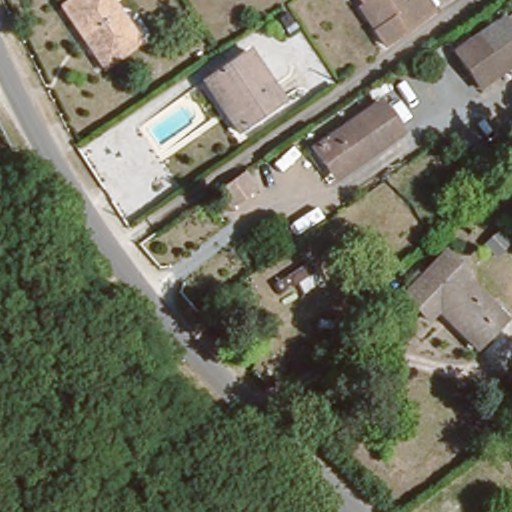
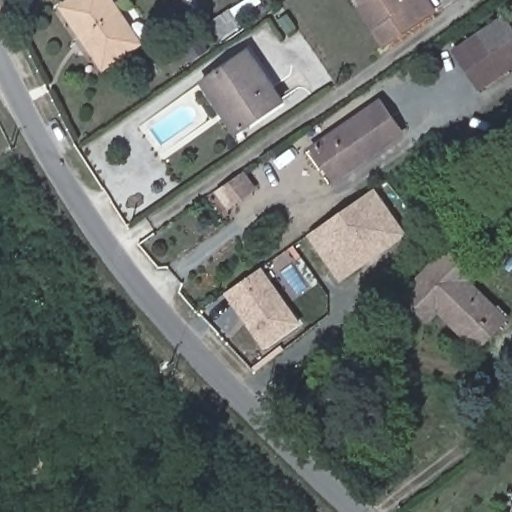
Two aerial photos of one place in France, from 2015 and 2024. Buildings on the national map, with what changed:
unchanged [(137,41),(102,65),(61,6),(70,0),(109,0),(137,41)]
unchanged [(385,42),(375,26),(379,22),(364,0),(429,0),(435,9),(385,42)]
unchanged [(478,93),(448,49),(504,15),(512,24),(512,70),(478,93)]
unchanged [(207,82),(245,57),(279,107),(235,135),(225,120),(202,86),(207,82)]
unchanged [(323,164),(313,148),(378,102),(399,133),(339,175),(333,179),(323,164)]
unchanged [(267,183),(232,206),(222,191),(256,168),(267,183)]
new [(340,282),(307,235),(375,187),(409,235),(340,282)]
unchanged [(499,327),(477,348),(447,319),(439,311),(428,322),(403,295),(444,253),(498,307),(509,318),(499,327)]
new [(301,323),(264,350),(224,294),(262,267),(301,323)]

